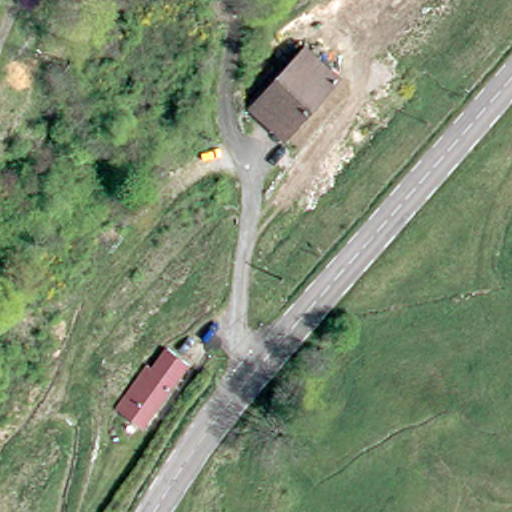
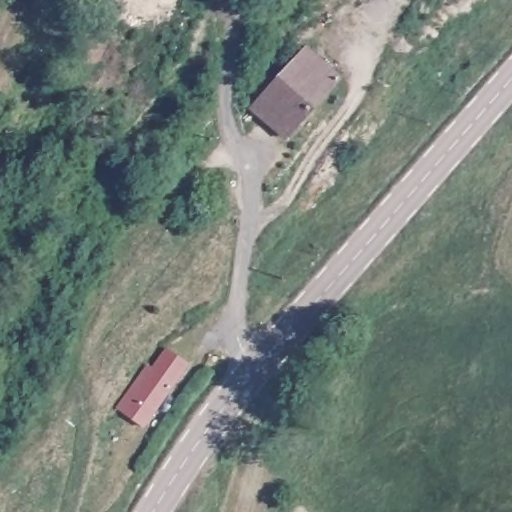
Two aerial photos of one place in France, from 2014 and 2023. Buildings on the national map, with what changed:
unchanged [(339,80),(341,83),(284,141),(248,109),(272,84),(274,86),(309,51),(339,80)]
unchanged [(143,431),(123,416),(154,372),(176,387),(143,431)]

